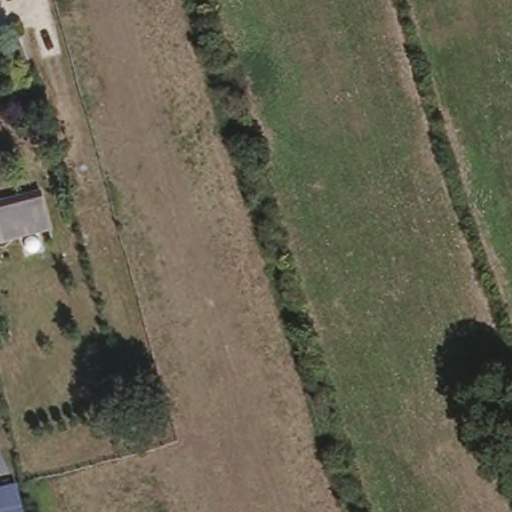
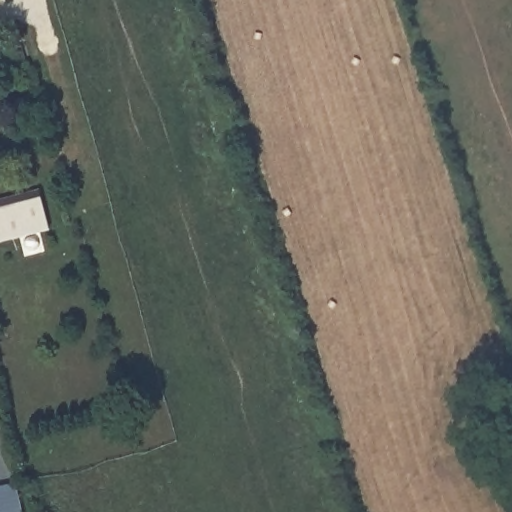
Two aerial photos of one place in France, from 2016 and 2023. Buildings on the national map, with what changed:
unchanged [(0,241),(0,206),(44,193),(53,227),(0,241)]
unchanged [(24,512),(0,512),(0,489),(19,485),(24,512)]

